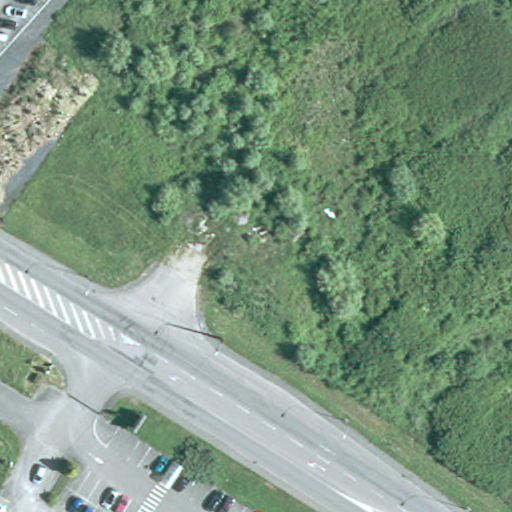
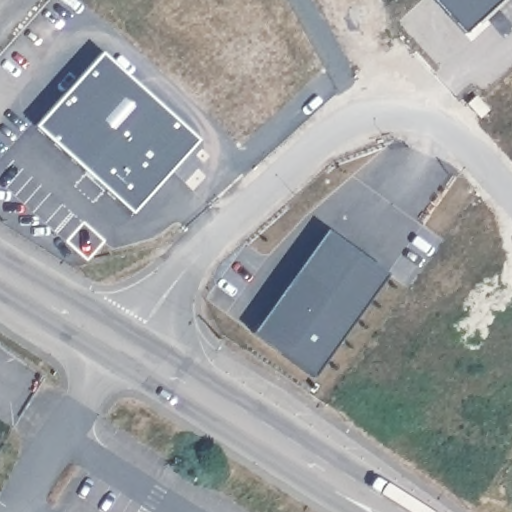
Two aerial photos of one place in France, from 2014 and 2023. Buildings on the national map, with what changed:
new [(465,33),(437,0),(501,0),(465,33)]
new [(195,140),(125,216),(31,127),(97,49),(195,140)]
new [(474,95),(487,109),(479,117),(466,102),(474,95)]
new [(384,276),(308,378),(249,336),(321,232),(384,276)]

